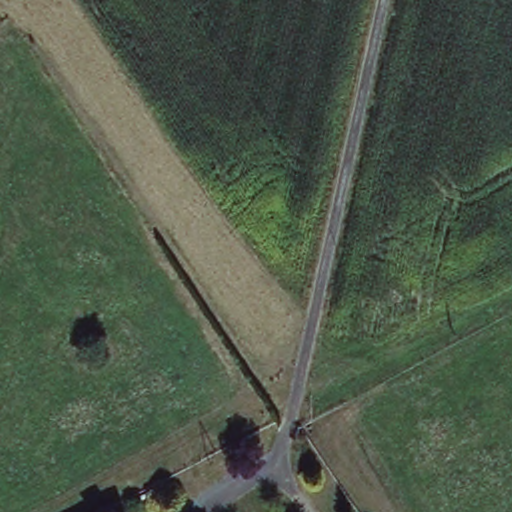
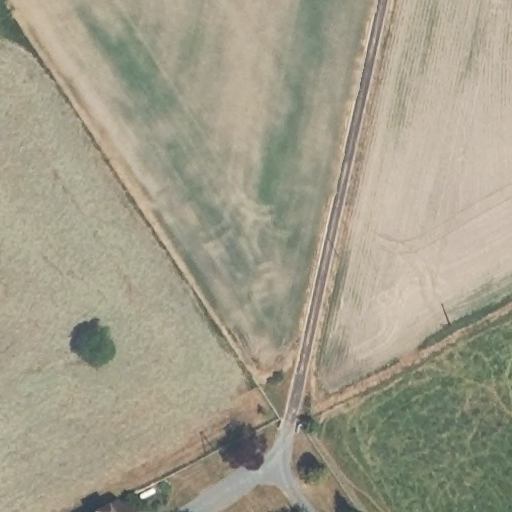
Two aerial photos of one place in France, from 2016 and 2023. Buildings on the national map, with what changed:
unchanged [(123,512),(97,512),(118,501),(123,512)]

